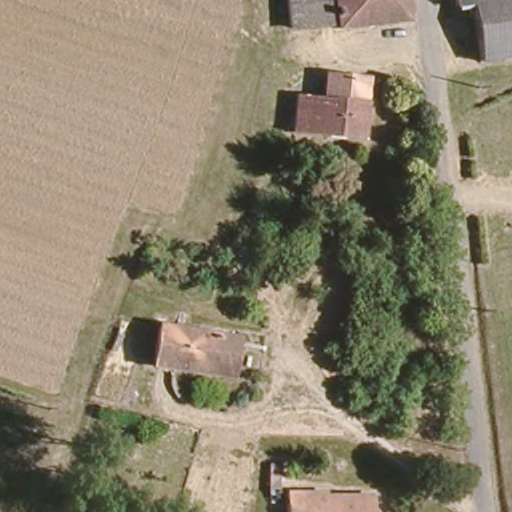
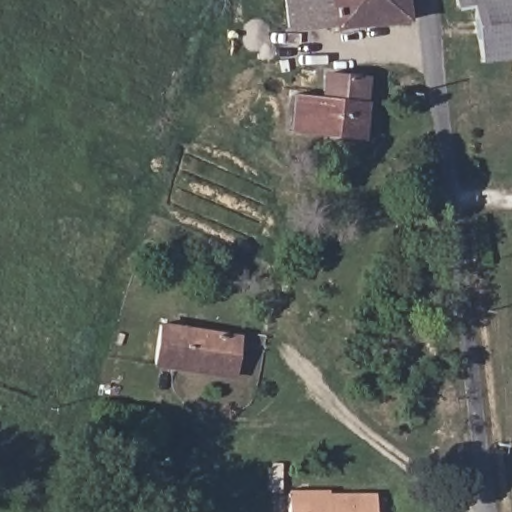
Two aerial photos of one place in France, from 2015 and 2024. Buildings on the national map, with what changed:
unchanged [(292,34),(286,0),(331,0),(335,29),(292,34)]
unchanged [(406,0),(408,20),(335,29),(331,0),(406,0)]
unchanged [(455,12),(453,0),(469,0),(471,9),(455,12)]
unchanged [(471,9),(469,0),(512,0),(512,59),(482,65),(471,9)]
unchanged [(340,84),(362,82),(365,136),(297,141),(295,102),(341,98),(340,84)]
unchanged [(231,376),(192,371),(153,366),(159,325),(228,335),(236,336),(231,376)]
unchanged [(288,494),(306,494),(306,496),(325,496),(373,495),(374,512),(289,512),(288,494)]

